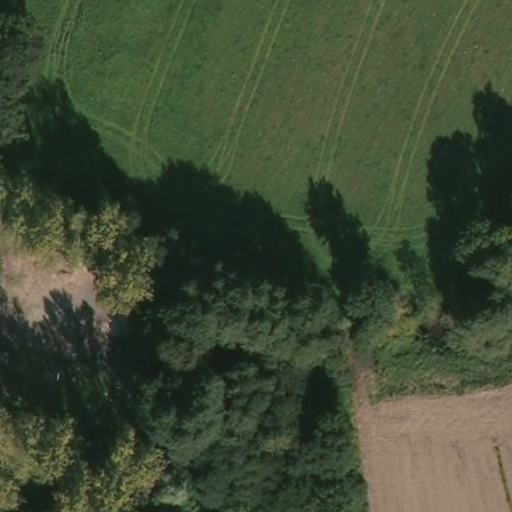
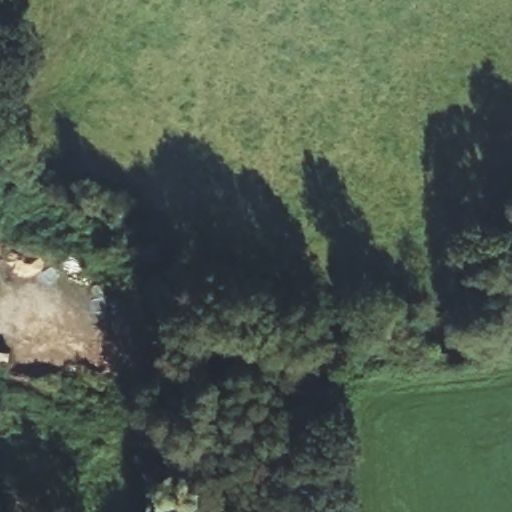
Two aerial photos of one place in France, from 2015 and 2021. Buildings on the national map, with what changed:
unchanged [(147,363),(144,364),(142,365),(139,364),(137,363),(135,361),(134,358),(135,355),(136,353),(139,351),(142,351),(145,351),(147,353),(148,355),(149,358),(148,361),(147,363)]
unchanged [(0,365),(0,353),(10,354),(8,366),(0,365)]

